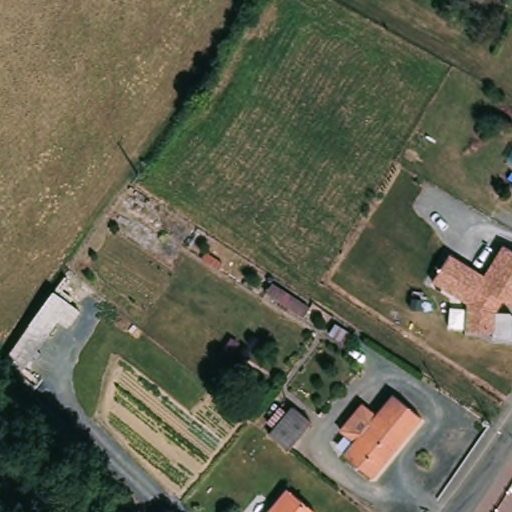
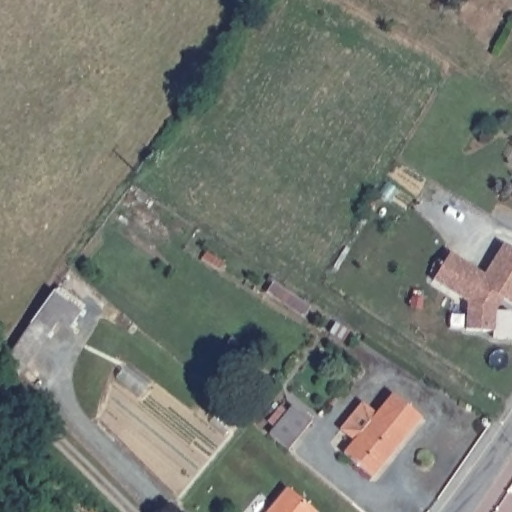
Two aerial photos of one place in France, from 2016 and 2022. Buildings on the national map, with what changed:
unchanged [(512,250),(512,306),(502,300),(496,308),(496,311),(510,312),(512,315),(512,340),(492,338),(492,332),(464,330),(465,301),(432,282),(450,252),(485,273),(503,244),(512,250)]
unchanged [(72,325),(61,319),(22,373),(5,361),(55,291),(83,310),(72,325)]
unchanged [(282,380),(307,401),(285,428),(261,409),(282,380)]
unchanged [(342,430),(363,405),(376,415),(390,399),(418,421),(372,477),(344,454),(355,441),(342,430)]
unchanged [(311,512),(269,512),(286,491),(311,512)]

